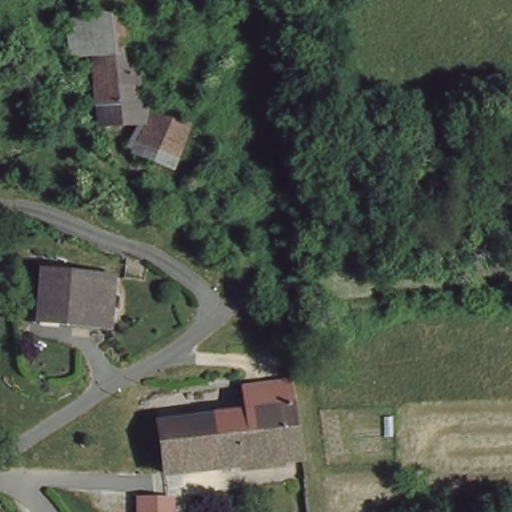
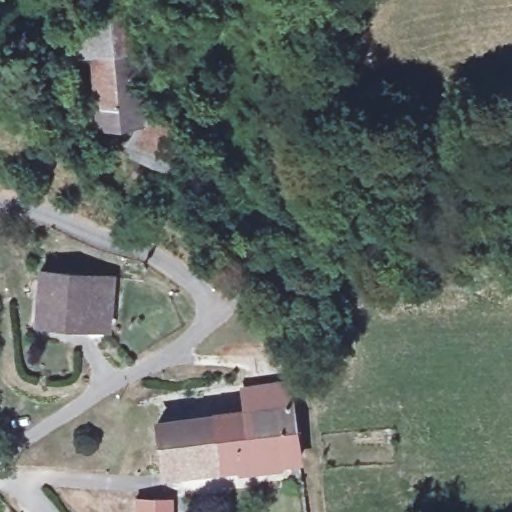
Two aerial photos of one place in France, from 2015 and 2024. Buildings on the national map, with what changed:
unchanged [(92,17),(93,64),(65,63),(65,17),(92,17)]
unchanged [(104,17),(125,17),(131,98),(159,111),(159,126),(182,134),(170,174),(125,158),(127,144),(127,133),(98,132),(93,64),(92,17),(104,17)]
unchanged [(40,274),(115,278),(110,324),(36,319),(40,274)]
unchanged [(240,425),(240,393),(280,391),(282,413),(288,461),(213,472),(209,429),(240,425)]
unchanged [(153,434),(209,429),(213,472),(157,480),(153,434)]
unchanged [(162,512),(132,512),(132,499),(161,500),(162,512)]

